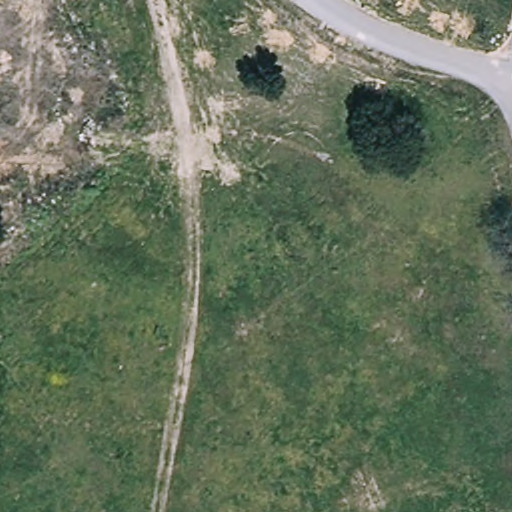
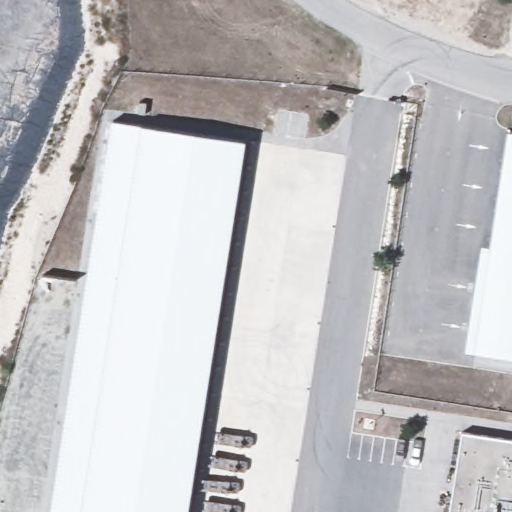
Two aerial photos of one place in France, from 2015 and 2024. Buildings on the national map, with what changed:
new [(188,512),(50,512),(112,120),(246,140),(188,512)]
new [(508,130),(512,131),(512,358),(465,350),(481,249),(489,250),(508,130)]
new [(449,512),(462,432),(512,440),(512,512),(449,512)]

